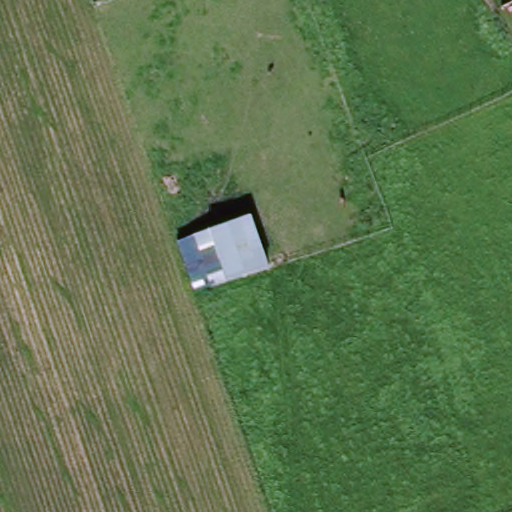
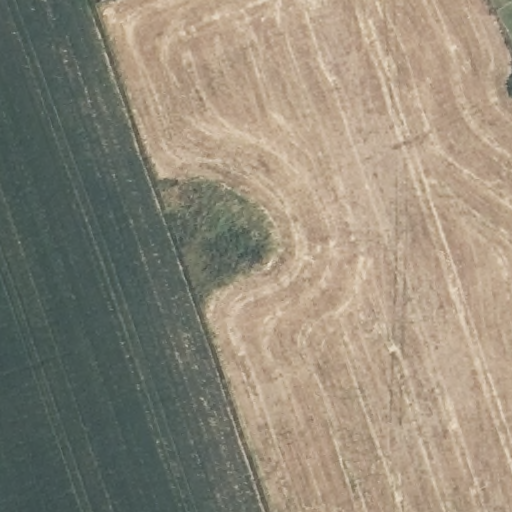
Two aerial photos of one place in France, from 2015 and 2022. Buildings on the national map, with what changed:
demolished [(269,269),(195,293),(177,245),(251,216),(269,269)]

